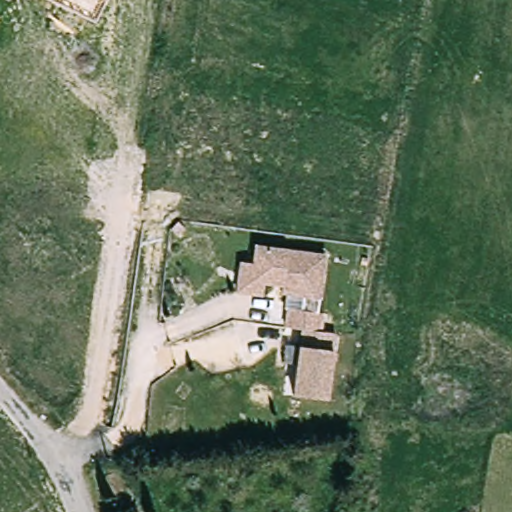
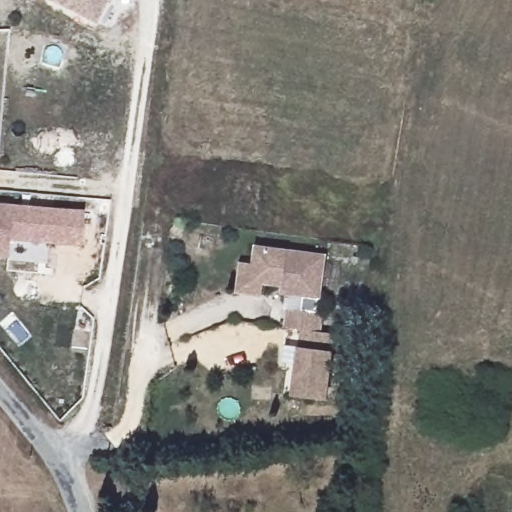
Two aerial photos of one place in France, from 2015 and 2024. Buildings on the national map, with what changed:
new [(96,25),(46,0),(108,0),(96,25)]
new [(80,248),(9,242),(7,259),(0,259),(0,205),(83,213),(80,248)]
unchanged [(288,295),(286,294),(286,287),(268,284),(265,297),(241,292),(245,263),(257,264),(260,246),(330,258),(321,315),(326,316),(324,335),(306,332),(289,329),(291,310),(286,309),(288,295)]
unchanged [(338,337),(329,402),(296,398),(306,332),(324,335),(338,337)]

